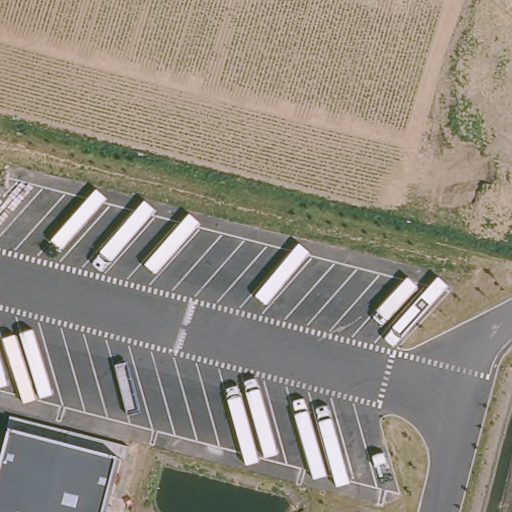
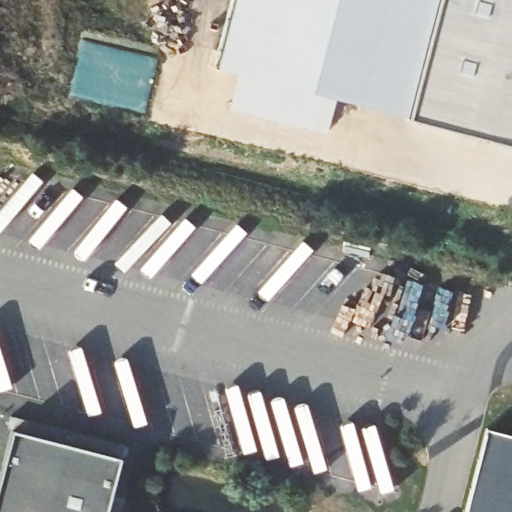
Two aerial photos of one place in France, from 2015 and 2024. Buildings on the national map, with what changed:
new [(213,65),(230,0),(512,0),(512,144),(333,96),(324,131),(228,106),(237,72),(213,65)]
unchanged [(11,417),(129,448),(124,461),(119,459),(106,512),(0,512),(0,476),(12,429),(8,427),(11,417)]
new [(512,435),(512,512),(464,512),(486,428),(512,435)]

